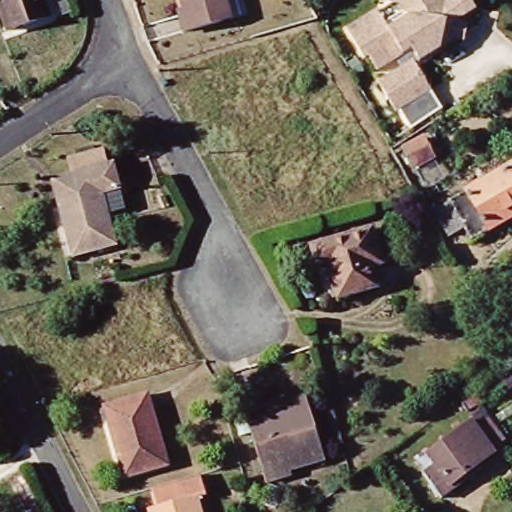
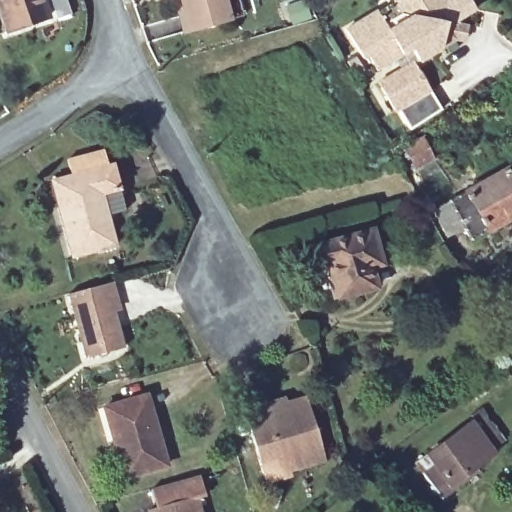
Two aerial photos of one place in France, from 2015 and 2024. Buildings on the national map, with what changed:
unchanged [(48,17),(8,31),(0,10),(0,0),(42,0),(48,17)]
unchanged [(177,13),(184,12),(180,0),(225,0),(230,19),(189,31),(183,33),(177,13)]
unchanged [(460,39),(424,61),(416,49),(382,70),(373,56),(369,58),(351,29),(382,11),(390,23),(407,13),(399,0),(448,0),(449,1),(451,0),(474,0),(480,9),(462,21),(464,24),(472,26),(469,41),(460,39)]
unchanged [(435,90),(400,111),(384,83),(418,62),(435,90)]
unchanged [(433,157),(414,166),(404,148),(423,138),(433,157)]
unchanged [(67,160),(103,150),(107,165),(113,164),(125,210),(108,215),(116,246),(73,258),(58,205),(51,180),(56,179),(72,176),(67,160)]
unchanged [(465,227),(449,236),(434,210),(469,189),(470,186),(479,181),(483,183),(512,166),(512,217),(472,240),(465,227)]
unchanged [(381,264),(370,267),(376,287),(338,298),(333,278),(331,278),(327,265),(317,267),(311,247),(371,230),(381,264)]
new [(116,302),(118,309),(112,311),(122,348),(86,358),(68,294),(111,282),(116,302)]
unchanged [(166,466),(124,477),(104,407),(146,395),(166,466)]
unchanged [(266,484),(263,474),(242,404),(258,400),(259,405),(286,397),(287,402),(305,397),(324,461),(288,472),(290,477),(266,484)]
unchanged [(427,455),(471,422),(493,452),(465,473),(469,478),(441,499),(423,475),(416,464),(427,455)]
unchanged [(156,507),(151,489),(199,475),(205,495),(195,498),(198,512),(150,512),(149,509),(156,507)]

